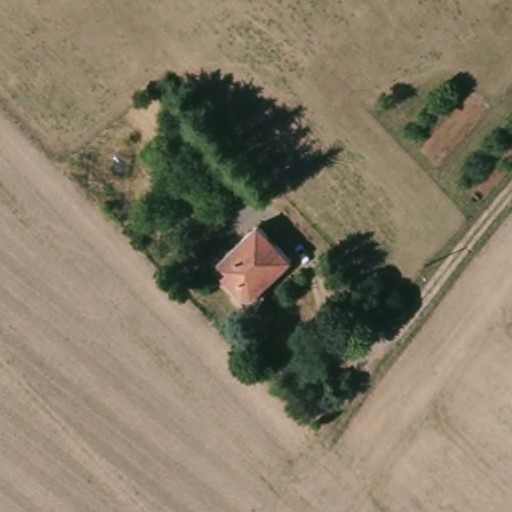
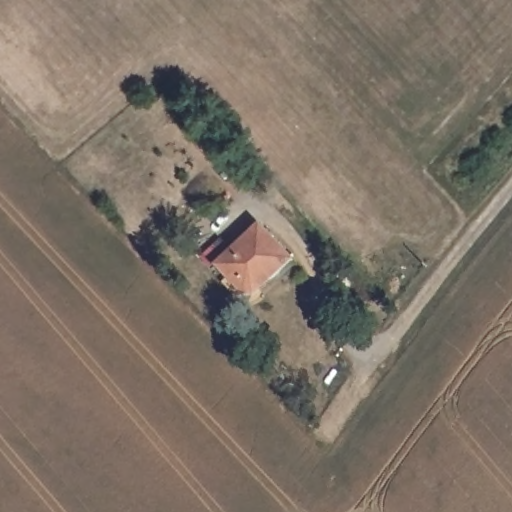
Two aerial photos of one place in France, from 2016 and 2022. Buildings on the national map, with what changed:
unchanged [(256,292),(240,292),(217,271),(261,227),(291,257),(256,292)]

